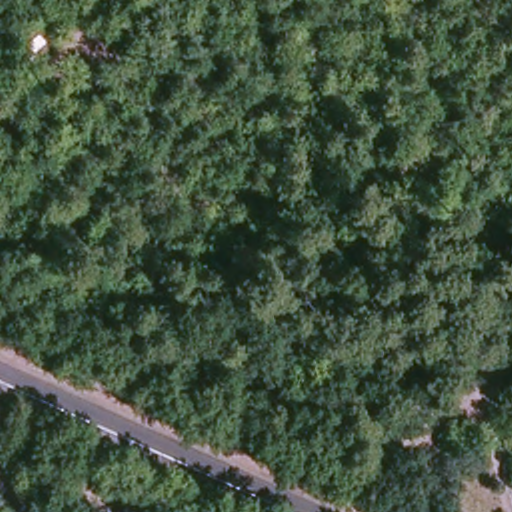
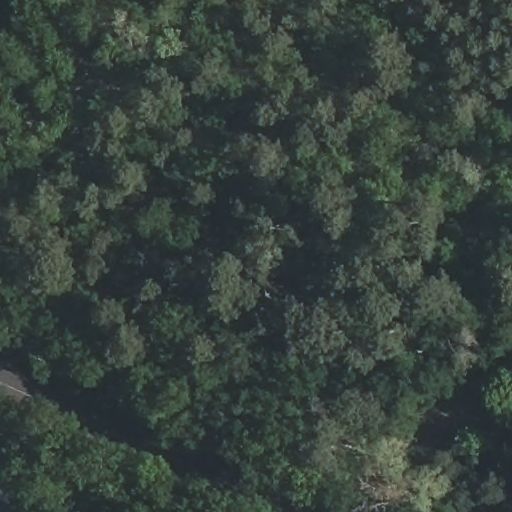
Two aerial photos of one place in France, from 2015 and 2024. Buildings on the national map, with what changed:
unchanged [(512,431),(508,430),(512,420),(512,431)]

